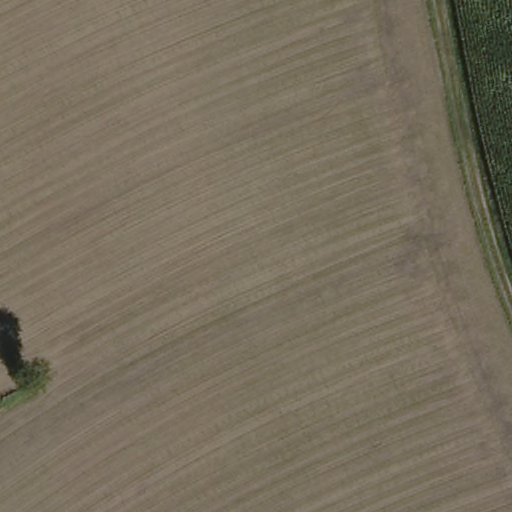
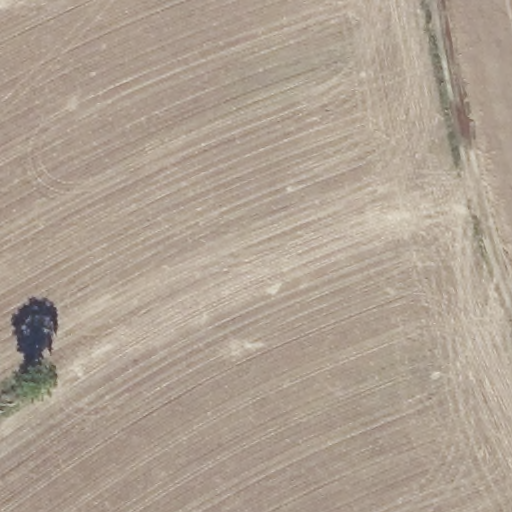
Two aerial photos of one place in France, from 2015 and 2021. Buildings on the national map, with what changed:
[]

